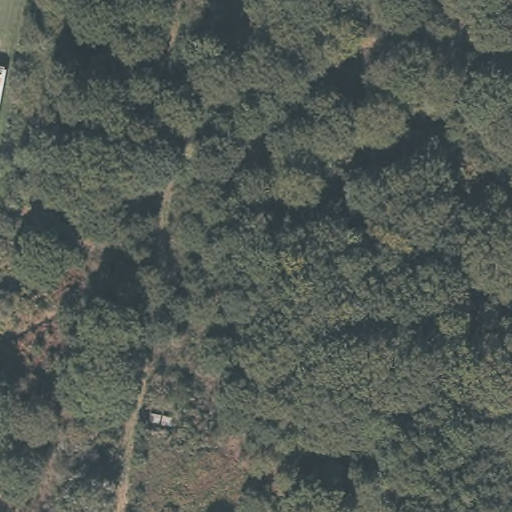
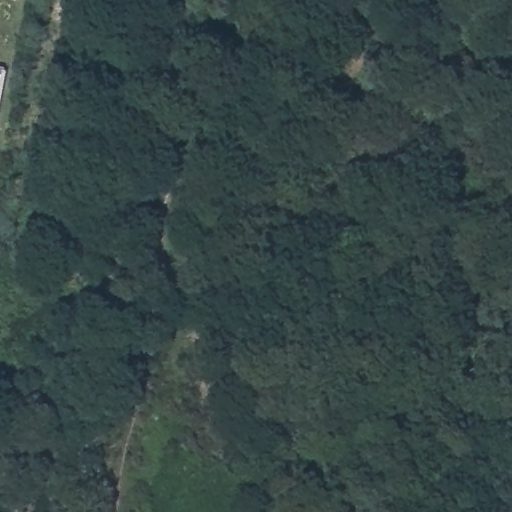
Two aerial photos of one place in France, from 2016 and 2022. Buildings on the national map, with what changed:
unchanged [(0,93),(0,63),(6,64),(0,93)]
unchanged [(177,412),(171,428),(149,425),(154,408),(177,412)]

